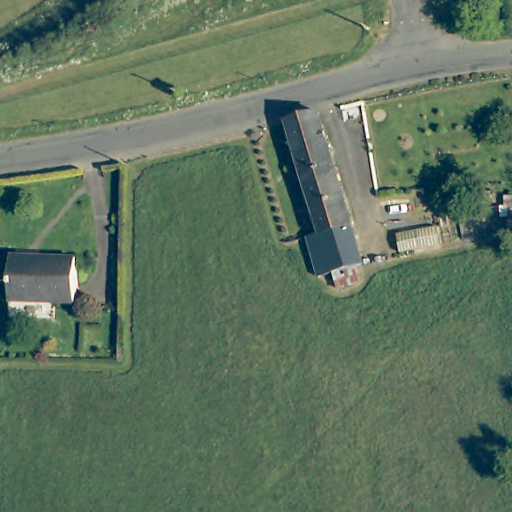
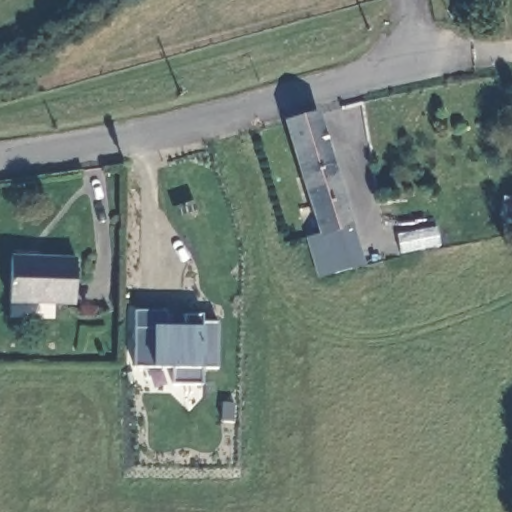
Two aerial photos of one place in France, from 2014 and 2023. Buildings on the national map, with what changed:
unchanged [(306,238),(321,234),(314,210),(305,180),(288,124),(319,116),(353,230),(363,266),(357,268),(334,273),(318,277),(306,238)]
unchanged [(75,262),(74,305),(11,304),(11,261),(75,262)]
new [(136,310),(167,311),(171,326),(190,326),(186,315),(202,315),(202,323),(216,323),(217,367),(203,368),(201,385),(174,384),(178,368),(154,367),(137,365),(136,310)]

